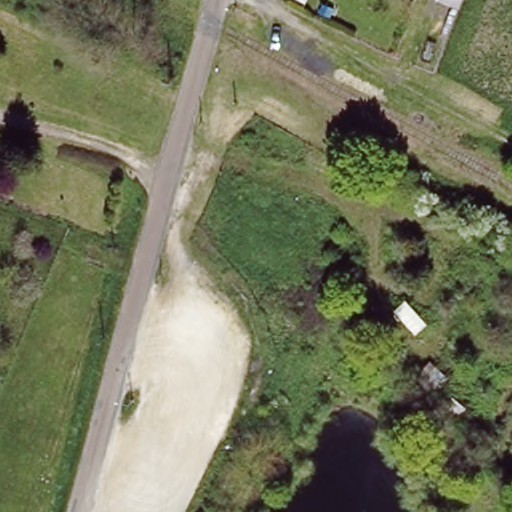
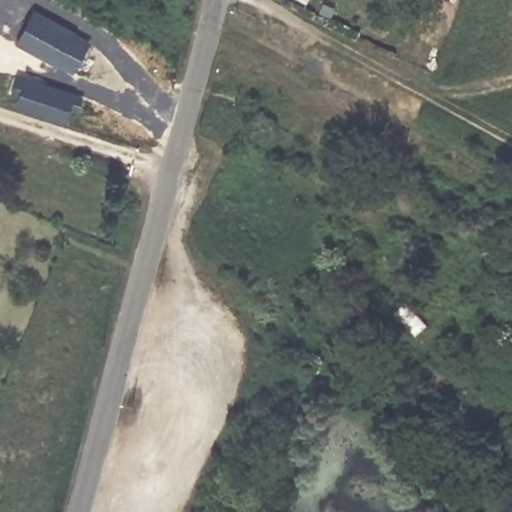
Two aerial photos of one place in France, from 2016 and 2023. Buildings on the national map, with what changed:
new [(74,70),(59,61),(58,64),(18,41),(36,11),(75,33),(74,35),(89,44),(74,70)]
new [(80,112),(61,106),(56,119),(19,107),(29,79),(66,92),(85,98),(80,112)]

